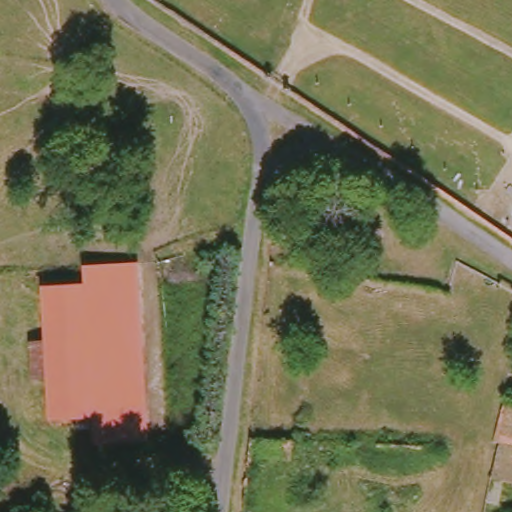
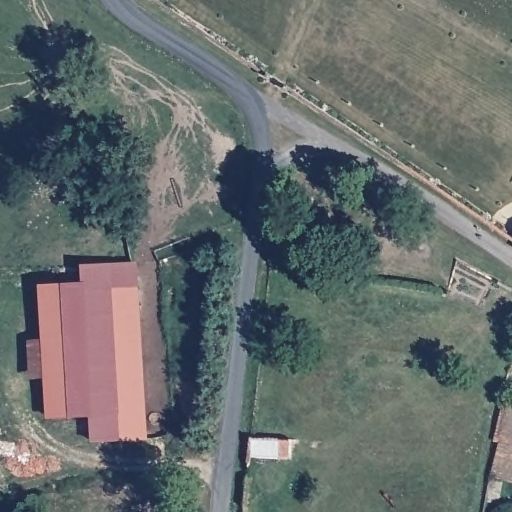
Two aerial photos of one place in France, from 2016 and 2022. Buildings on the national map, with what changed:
unchanged [(30,337),(45,336),(43,285),(138,281),(150,436),(98,440),(95,414),(51,416),(47,367),(32,368),(30,337)]
unchanged [(509,409),(512,410),(512,451),(502,449),(509,409)]
unchanged [(501,455),(502,449),(512,451),(512,479),(497,476),(501,455)]

